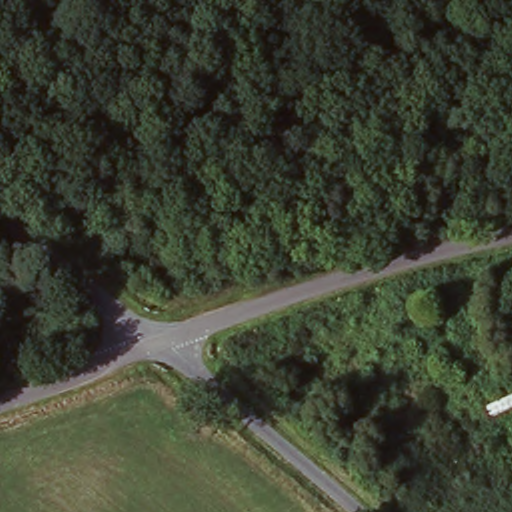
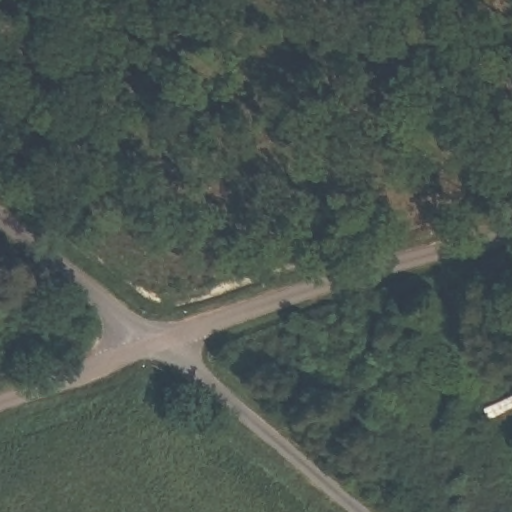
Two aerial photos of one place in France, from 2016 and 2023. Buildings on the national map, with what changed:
unchanged [(479,407),(512,394),(512,410),(484,423),(479,407)]

